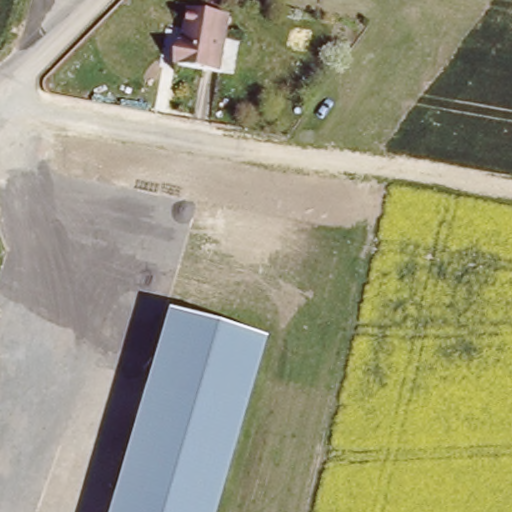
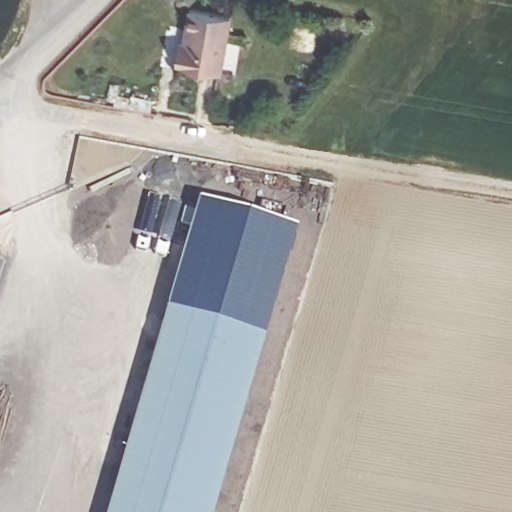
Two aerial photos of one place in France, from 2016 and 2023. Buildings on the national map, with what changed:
unchanged [(179,50),(183,51),(189,14),(232,20),(222,77),(175,70),(179,50)]
new [(174,310),(200,202),(298,232),(270,340),(174,310)]
unchanged [(174,310),(270,340),(215,512),(109,512),(174,310)]

